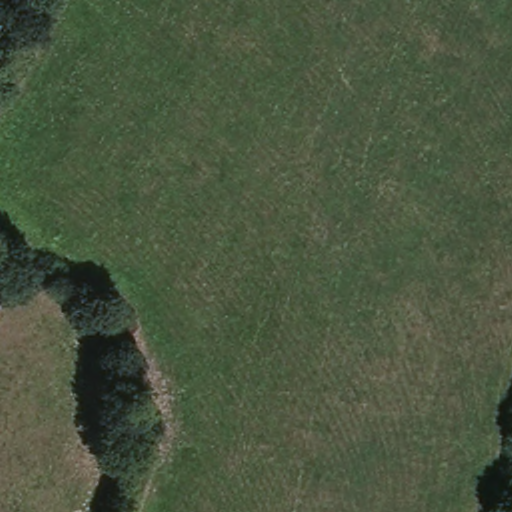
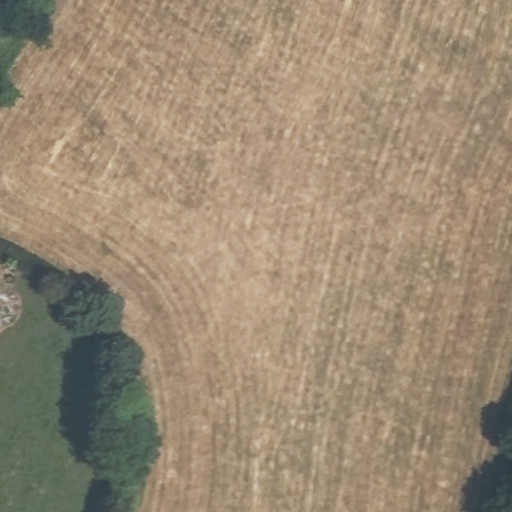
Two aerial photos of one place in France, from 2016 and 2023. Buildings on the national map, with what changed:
unchanged [(0,293),(0,287),(1,287),(0,293)]

